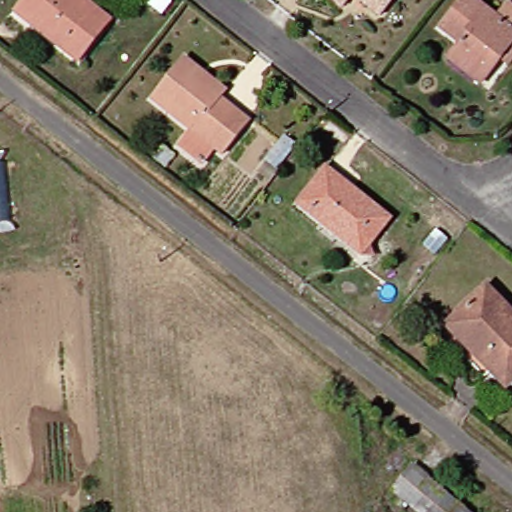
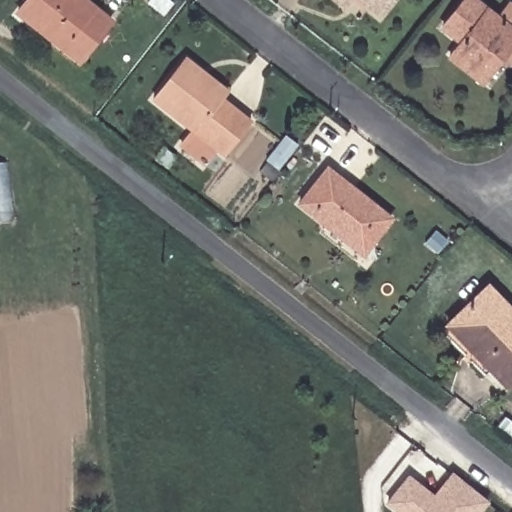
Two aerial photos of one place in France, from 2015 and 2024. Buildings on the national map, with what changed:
unchanged [(26,0),(71,0),(101,25),(70,64),(32,33),(12,18),(19,10),(26,0)]
unchanged [(389,0),(371,22),(345,2),(339,10),(327,0),(389,0)]
unchanged [(445,53),(453,44),(433,28),(455,0),(458,0),(497,30),(508,19),(512,22),(512,51),(500,68),(491,60),(478,77),(472,84),(440,60),(445,53)]
unchanged [(218,159),(144,101),(177,59),(193,70),(219,89),(211,98),(245,124),(218,159)]
unchanged [(12,233),(0,234),(0,164),(4,164),(12,233)]
unchanged [(337,244),(291,208),(318,173),(382,224),(361,249),(355,258),(337,244)]
unchanged [(440,328),(483,290),(512,323),(512,374),(500,385),(495,389),(454,343),(440,328)]
demolished [(387,496),(406,471),(451,507),(447,512),(408,512),(387,496)]
new [(385,504),(408,474),(434,494),(451,472),(489,502),(481,512),(395,512),(385,504)]

